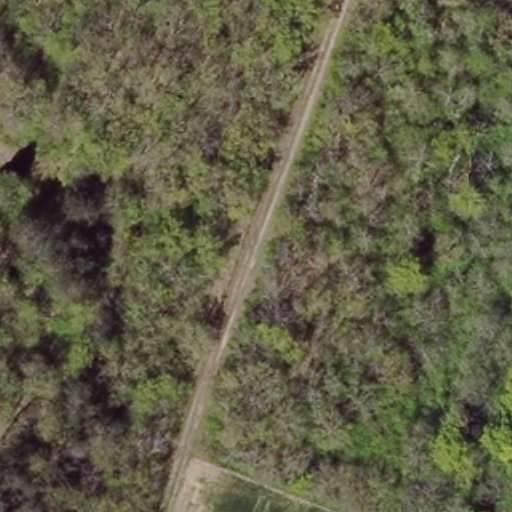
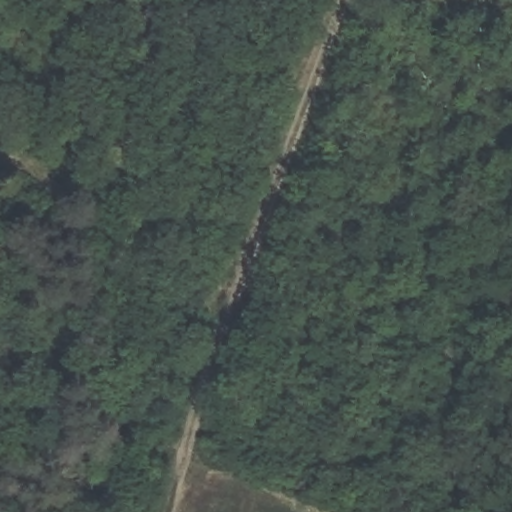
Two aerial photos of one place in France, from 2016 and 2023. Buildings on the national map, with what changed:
[]

